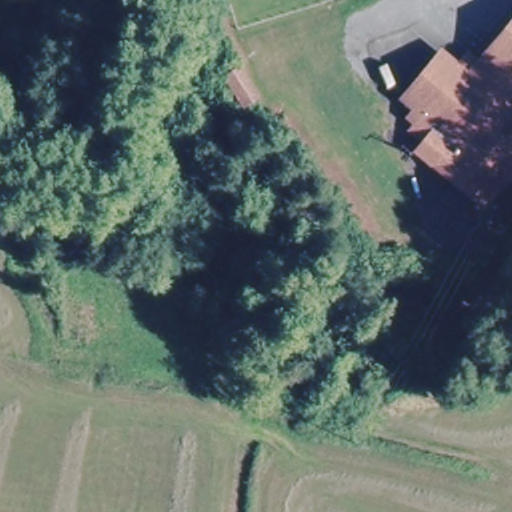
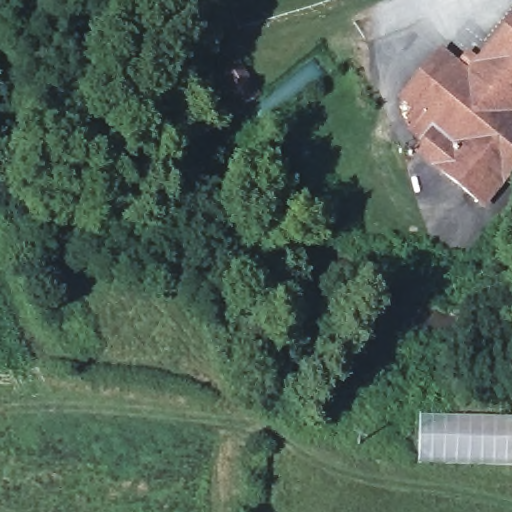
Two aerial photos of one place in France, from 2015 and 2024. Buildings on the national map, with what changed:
unchanged [(512,118),(512,167),(511,169),(478,207),(412,151),(421,142),(407,131),(412,125),(403,119),(410,111),(397,100),(436,54),(453,68),(465,54),(475,61),(512,16),(512,111),(509,115),(512,118)]
unchanged [(257,98),(245,106),(227,78),(239,70),(257,98)]
new [(512,418),(512,463),(418,462),(421,415),(512,418)]

